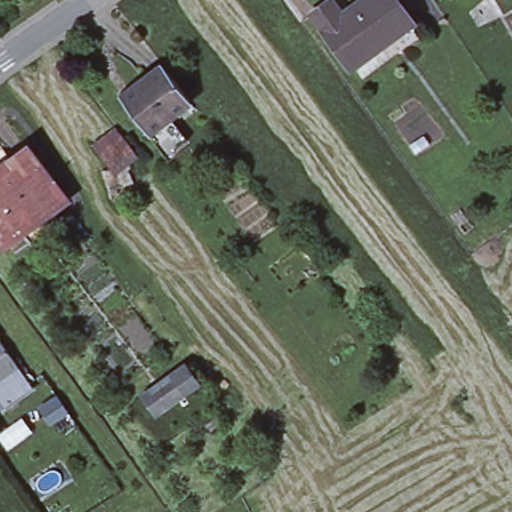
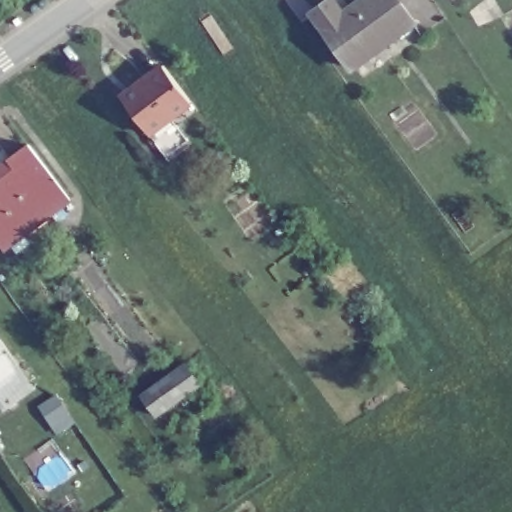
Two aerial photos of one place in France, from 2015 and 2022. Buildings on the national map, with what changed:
unchanged [(333,1),(345,16),(368,0),(394,0),(413,26),(352,70),(312,17),(333,1)]
unchanged [(125,103),(120,96),(130,88),(137,83),(162,63),(190,100),(158,125),(149,133),(125,103)]
unchanged [(10,163),(27,150),(69,205),(51,218),(47,213),(35,197),(10,163)]
unchanged [(35,197),(47,213),(25,230),(20,234),(22,238),(10,247),(4,251),(0,247),(0,183),(15,172),(35,197)]
unchanged [(0,383),(0,342),(19,369),(0,383)]
unchanged [(179,370),(194,389),(175,402),(166,409),(152,389),(160,383),(179,370)]

